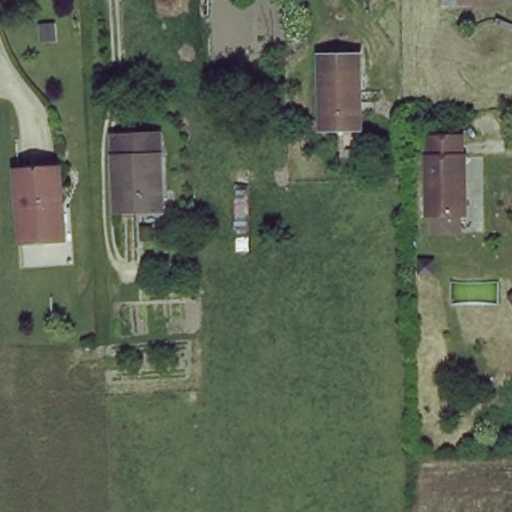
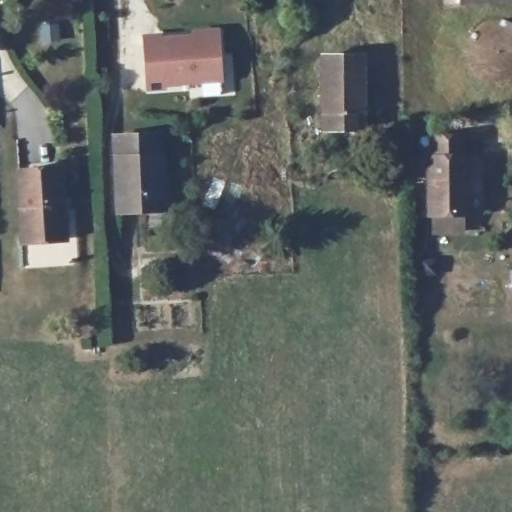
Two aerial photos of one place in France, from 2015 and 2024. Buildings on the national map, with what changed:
new [(218,26),(223,81),(167,85),(167,90),(146,91),(141,32),(162,30),(162,34),(192,32),(191,27),(218,26)]
unchanged [(324,135),(321,57),(358,56),(362,134),(324,135)]
unchanged [(120,209),(116,138),(163,137),(166,206),(120,209)]
unchanged [(464,137),(465,158),(469,157),(472,215),(460,215),(430,216),(429,160),(434,155),(434,137),(460,137),(464,137)]
unchanged [(59,204),(59,245),(23,246),(21,170),(62,169),(65,202),(59,204)]

